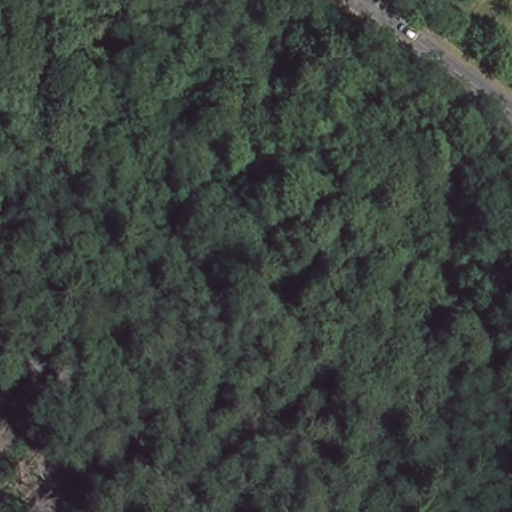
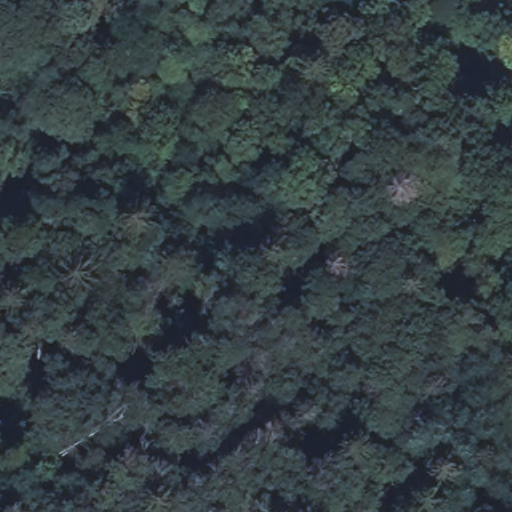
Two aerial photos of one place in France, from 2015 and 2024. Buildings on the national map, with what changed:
[]

